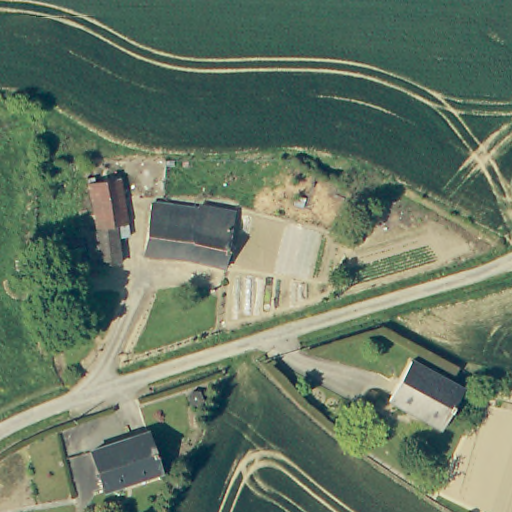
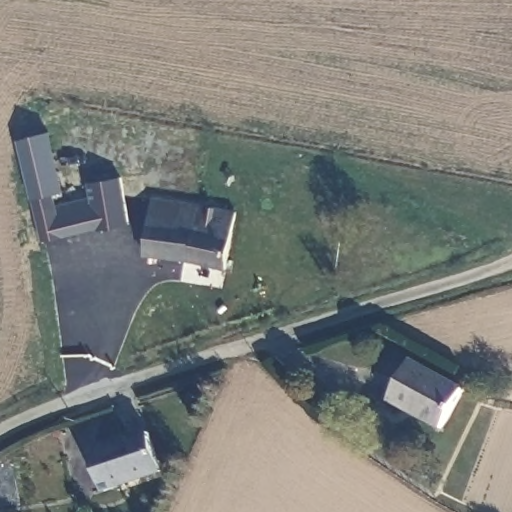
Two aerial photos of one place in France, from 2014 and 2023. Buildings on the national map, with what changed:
new [(65,191),(56,193),(55,205),(89,197),(86,182),(122,176),(130,225),(98,230),(42,241),(33,199),(17,139),(50,131),(65,191)]
demolished [(93,233),(84,186),(116,181),(124,227),(111,230),(93,233)]
unchanged [(226,267),(146,254),(154,201),(197,207),(201,205),(235,210),(226,267)]
unchanged [(412,359),(465,388),(442,428),(390,400),(412,359)]
unchanged [(100,490),(86,450),(145,431),(158,472),(100,490)]

